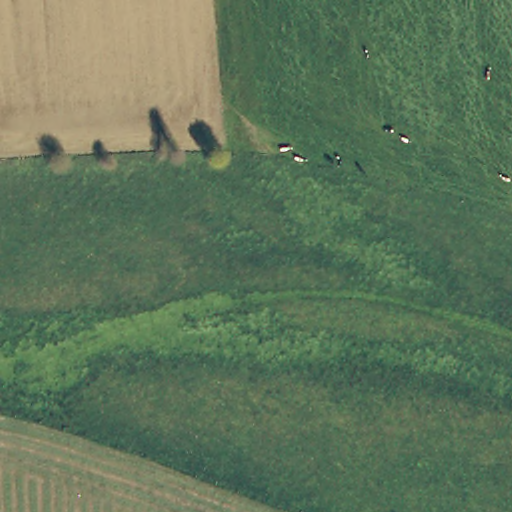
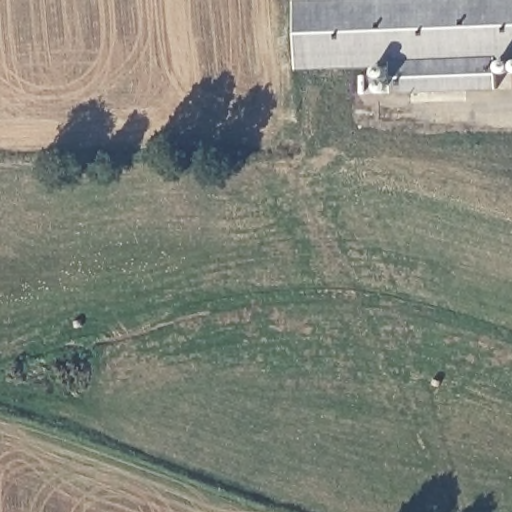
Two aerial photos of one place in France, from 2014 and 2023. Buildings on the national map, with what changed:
new [(292,0),(322,0),(292,1),(292,0)]
new [(495,63),(496,87),(391,92),(389,61),(294,65),(292,1),(322,0),(512,0),(512,62),(495,63)]

